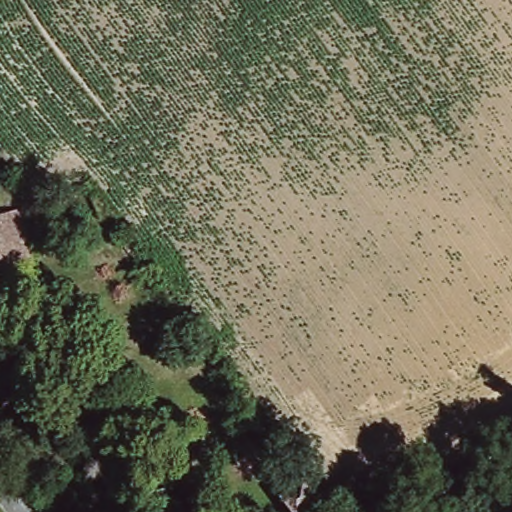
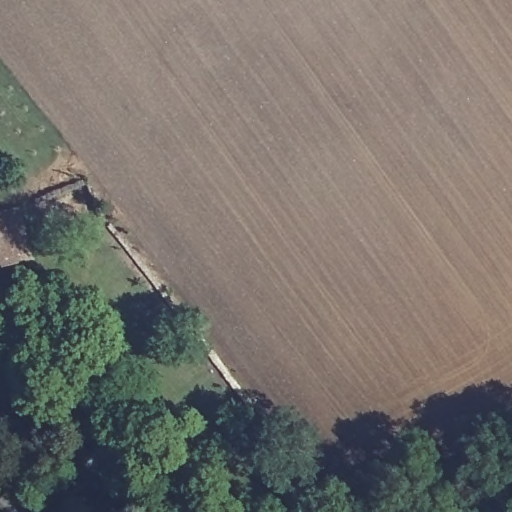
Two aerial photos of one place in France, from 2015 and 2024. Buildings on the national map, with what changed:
unchanged [(24,253),(0,258),(0,206),(14,202),(24,253)]
unchanged [(296,469),(310,488),(291,503),(277,485),(296,469)]

